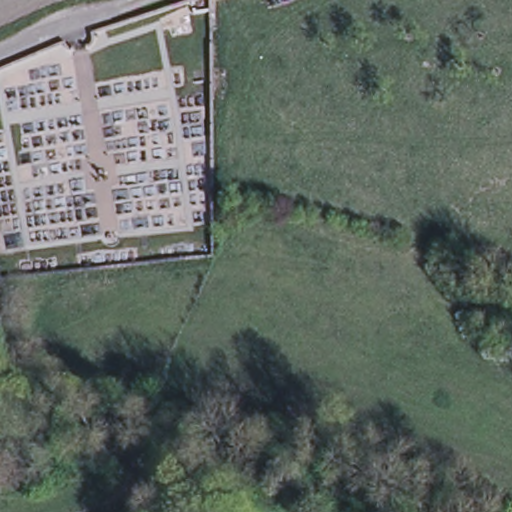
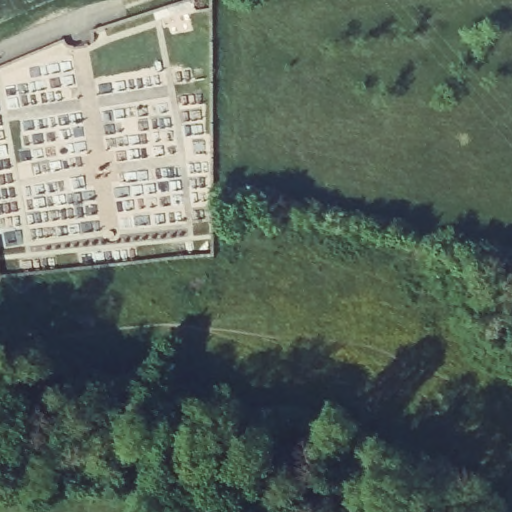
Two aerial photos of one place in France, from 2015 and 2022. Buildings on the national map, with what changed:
unchanged [(211,9),(194,10),(192,0),(211,0),(211,9)]

